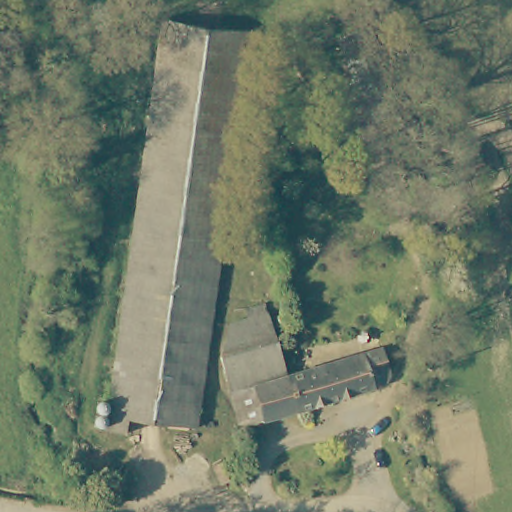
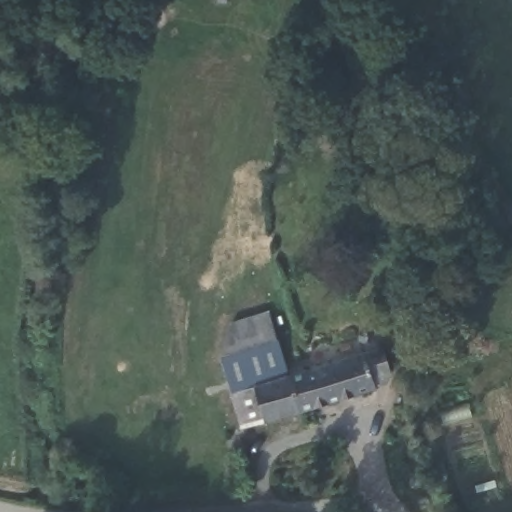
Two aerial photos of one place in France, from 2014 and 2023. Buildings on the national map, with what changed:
demolished [(178,433),(111,420),(174,18),(243,30),(178,433)]
unchanged [(288,382),(241,402),(232,372),(257,304),(275,302),(285,324),(288,382)]
unchanged [(383,348),(394,381),(358,394),(346,361),(383,348)]
unchanged [(288,382),(346,361),(358,394),(252,432),(241,402),(288,382)]

